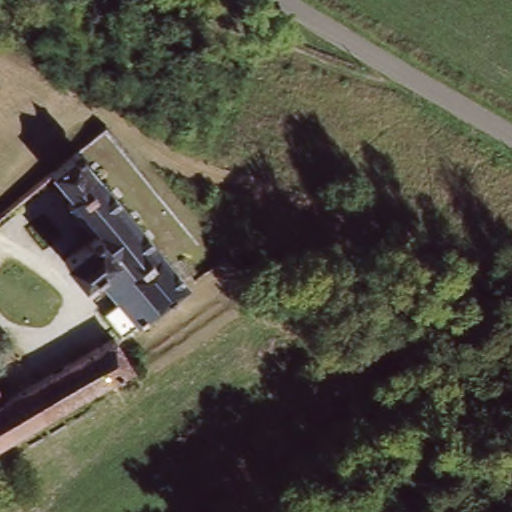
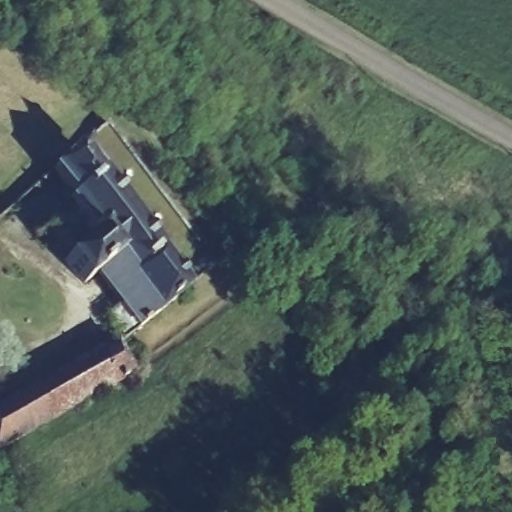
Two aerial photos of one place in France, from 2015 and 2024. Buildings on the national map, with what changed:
unchanged [(102,224),(74,185),(64,193),(49,170),(80,144),(186,285),(125,333),(109,310),(120,302),(98,270),(87,278),(68,252),(102,224)]
unchanged [(115,336),(139,370),(0,450),(0,392),(5,401),(115,336)]

